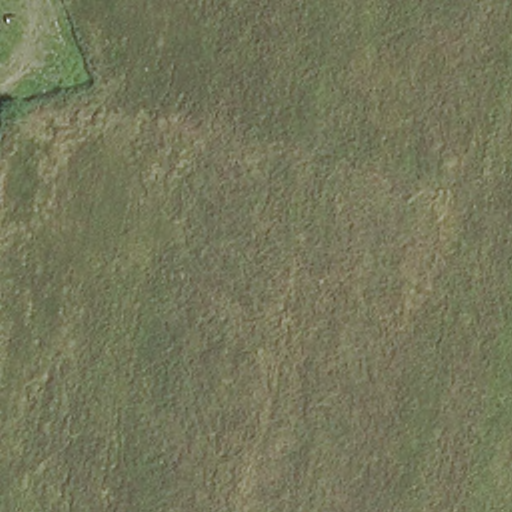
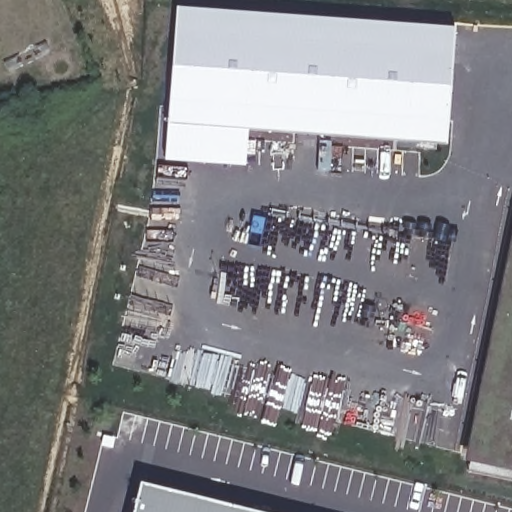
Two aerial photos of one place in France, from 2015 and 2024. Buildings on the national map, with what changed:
new [(456,24),(448,141),(251,131),(249,162),(167,157),(177,9),(456,24)]
new [(512,241),(512,457),(471,449),(512,241)]
new [(134,512),(141,483),(258,512),(134,512)]

